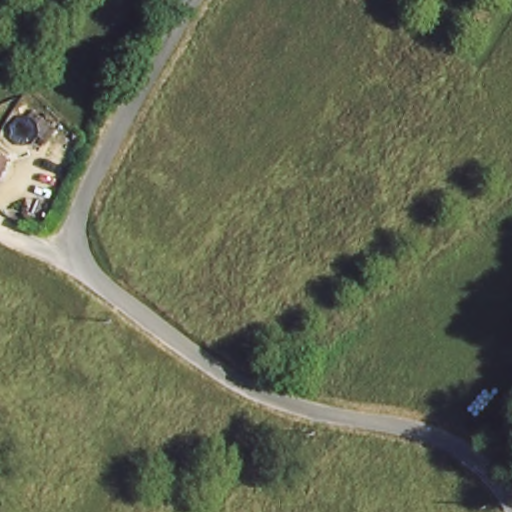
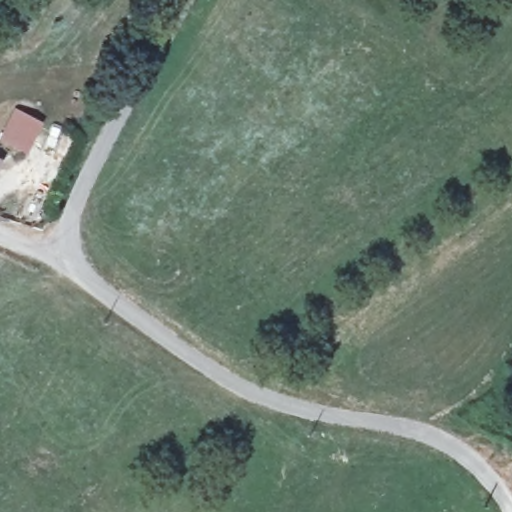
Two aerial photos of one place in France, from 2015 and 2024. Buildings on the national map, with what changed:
new [(44,121),(30,152),(0,138),(14,108),(44,121)]
unchanged [(0,175),(0,154),(5,156),(0,175)]

